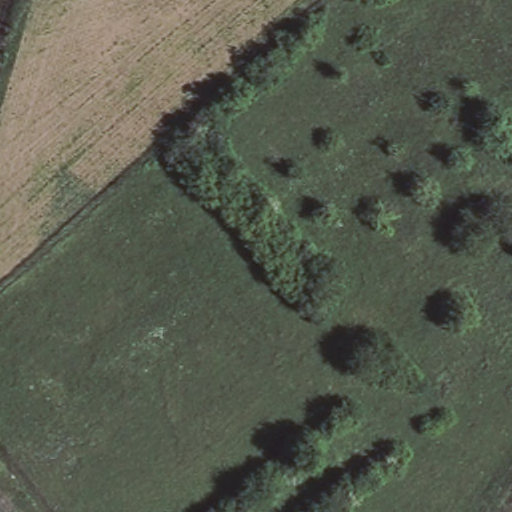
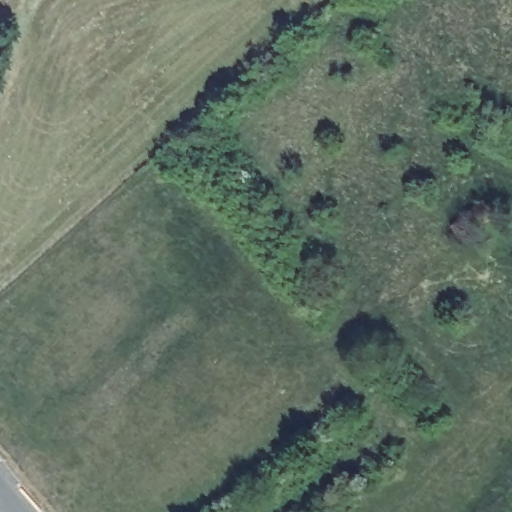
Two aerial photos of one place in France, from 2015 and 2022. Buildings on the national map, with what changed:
unchanged [(464,244),(451,228),(482,202),(495,215),(464,244)]

